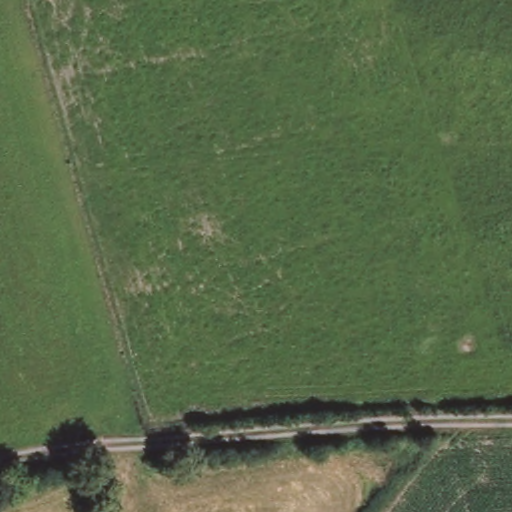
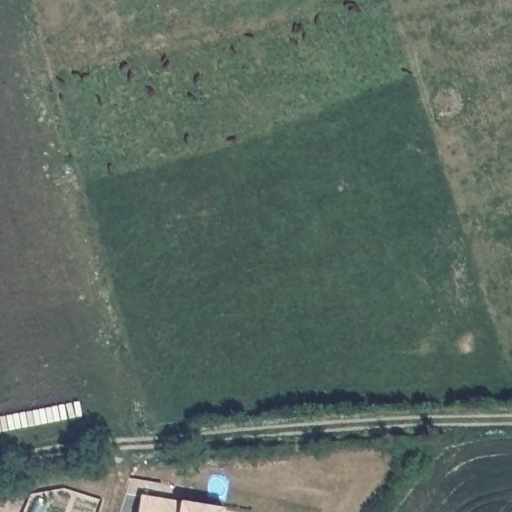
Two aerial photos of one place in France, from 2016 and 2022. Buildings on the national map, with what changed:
new [(223,511),(222,512),(138,512),(140,496),(179,503),(223,511)]

